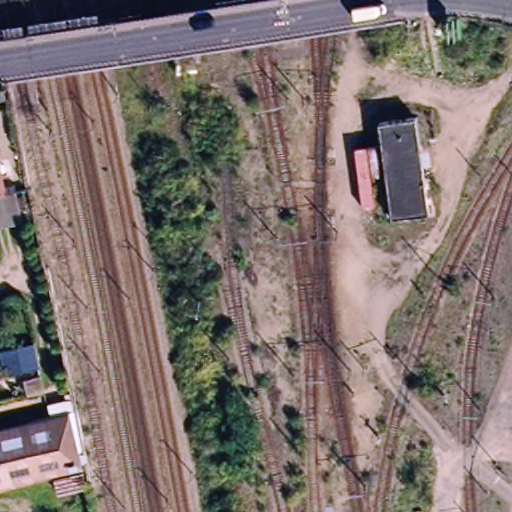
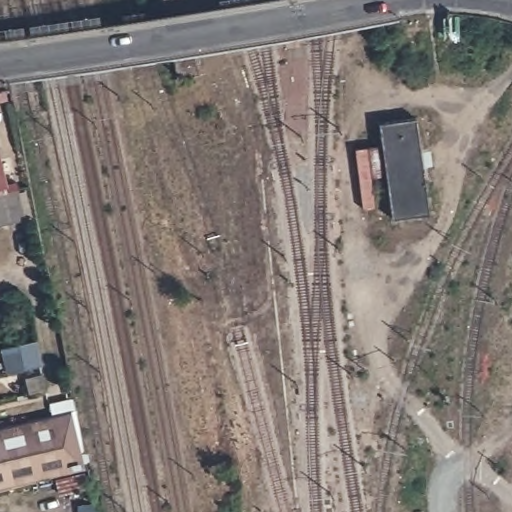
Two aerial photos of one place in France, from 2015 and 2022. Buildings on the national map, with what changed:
unchanged [(193,63),(194,75),(174,80),(169,52),(164,20),(160,0),(186,0),(188,5),(195,4),(193,15),(196,47),(198,61),(193,63)]
unchanged [(379,127),(414,121),(427,217),(393,221),(379,127)]
unchanged [(4,192),(16,189),(23,219),(9,221),(0,224),(0,177),(4,192)]
unchanged [(2,357),(21,353),(19,345),(34,341),(38,365),(31,366),(6,372),(2,357)]
unchanged [(38,390),(23,394),(19,378),(35,375),(38,390)]
unchanged [(0,488),(0,425),(42,415),(39,398),(59,394),(62,410),(73,469),(0,488)]

